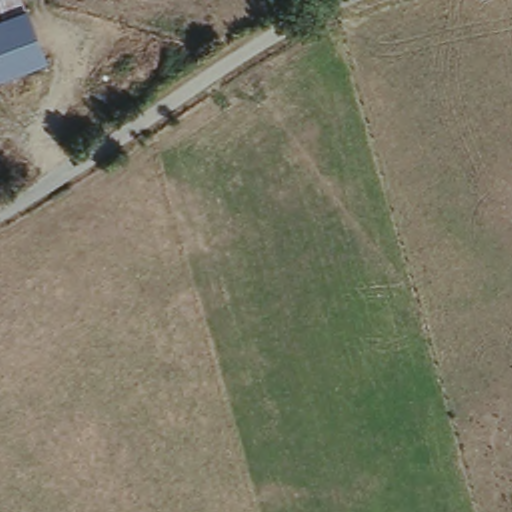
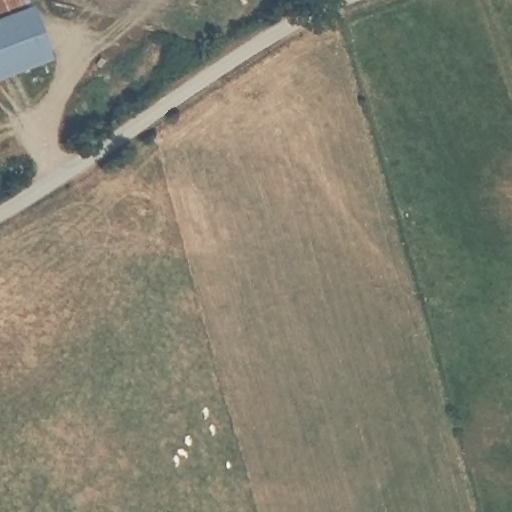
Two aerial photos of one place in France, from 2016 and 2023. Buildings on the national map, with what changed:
unchanged [(37,60),(0,70),(0,0),(22,0),(37,60)]

